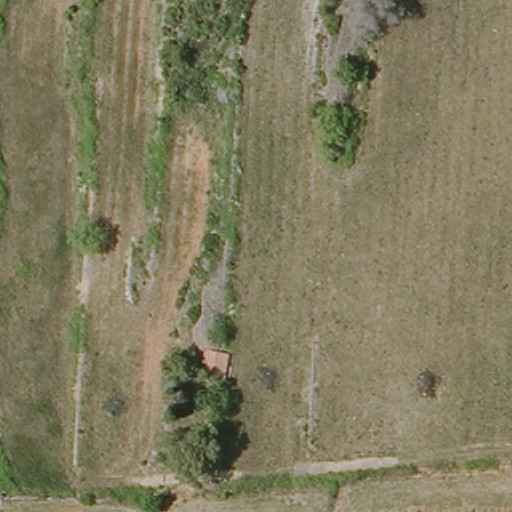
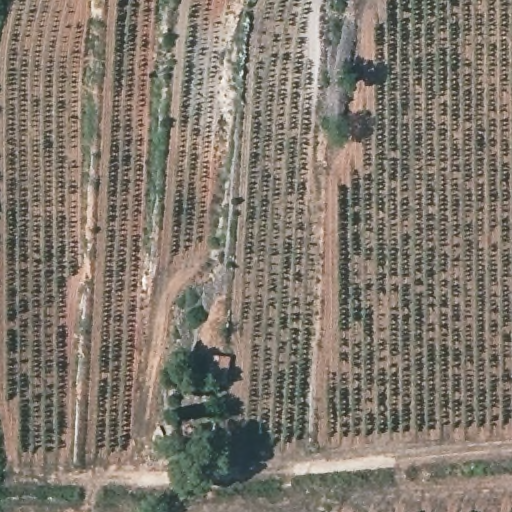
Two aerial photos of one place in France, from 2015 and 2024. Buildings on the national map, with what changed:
unchanged [(227,381),(202,380),(203,354),(228,354),(227,381)]

